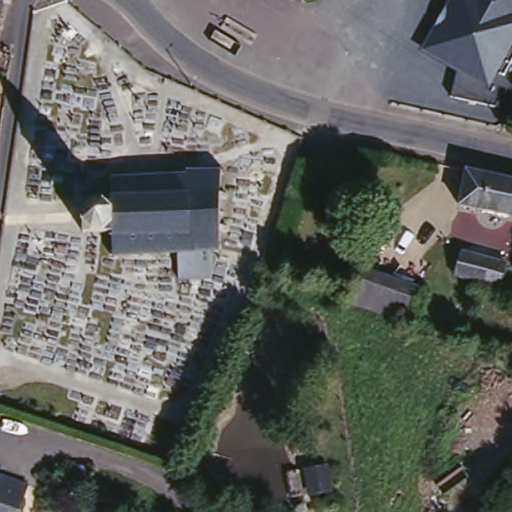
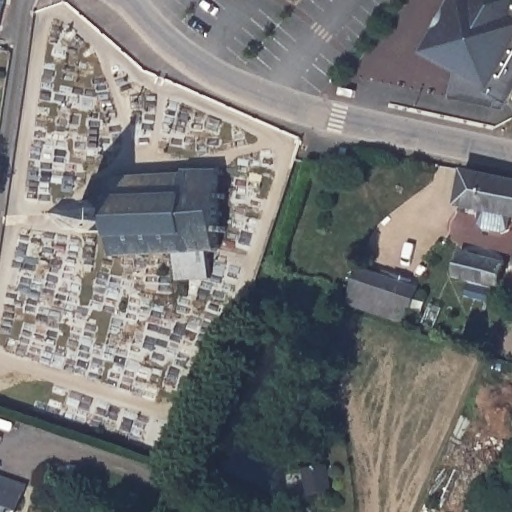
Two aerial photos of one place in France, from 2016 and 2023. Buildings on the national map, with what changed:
unchanged [(5,4),(0,2),(0,0),(6,0),(5,4)]
unchanged [(430,42),(454,0),(509,0),(512,2),(512,103),(495,95),(486,89),(493,76),(430,42)]
unchanged [(5,4),(0,27),(0,2),(5,4)]
unchanged [(85,200),(98,199),(97,178),(115,178),(115,175),(120,175),(120,177),(190,174),(191,165),(195,166),(195,169),(219,169),(220,165),(224,165),(224,170),(228,170),(228,175),(224,174),(224,191),(230,192),(230,199),(224,198),(224,209),(228,210),(228,215),(225,216),(224,225),(230,225),(230,231),(224,230),(224,245),(227,245),(226,250),(222,250),(221,252),(218,252),(218,251),(206,251),(206,274),(182,275),(182,252),(171,253),(172,257),(166,256),(167,253),(150,254),(149,258),(144,257),(144,254),(122,255),(122,260),(117,258),(117,256),(115,256),(114,251),(117,252),(117,238),(114,238),(114,234),(86,234),(85,200)]
unchanged [(466,169),(512,178),(512,216),(458,205),(466,169)]
unchanged [(468,248),(510,261),(504,282),(462,270),(468,248)]
unchanged [(367,263),(426,282),(413,318),(354,297),(367,263)]
unchanged [(492,296),(474,290),(477,279),(495,285),(492,296)]
unchanged [(171,420),(174,412),(193,418),(190,426),(171,420)]
unchanged [(1,468),(30,480),(22,500),(18,512),(0,504),(0,470),(1,468)]

